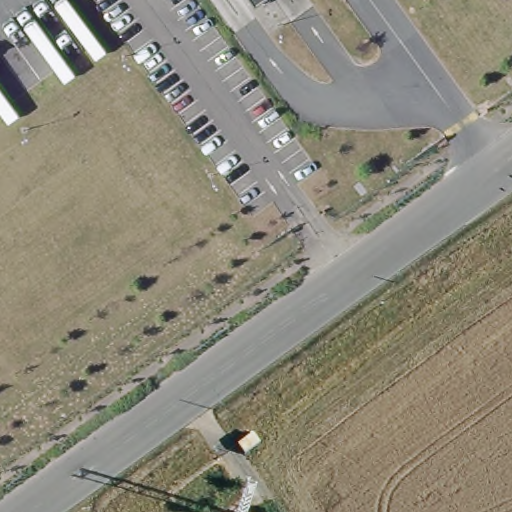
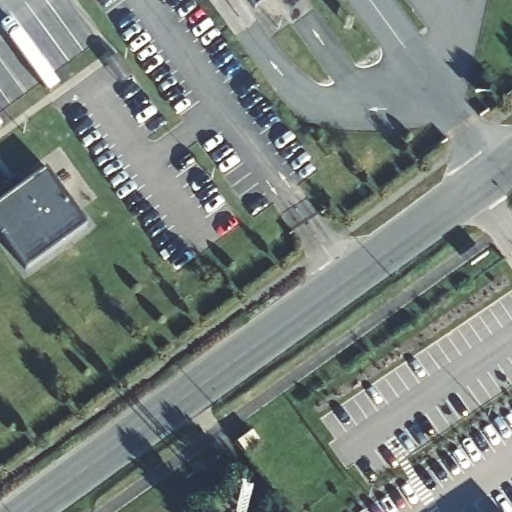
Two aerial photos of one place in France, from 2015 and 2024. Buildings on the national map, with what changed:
unchanged [(249,0),(267,0),(268,2),(257,10),(249,0)]
new [(20,176),(29,186),(51,169),(92,223),(30,265),(0,225),(0,201),(1,200),(0,199),(0,189),(20,176)]
unchanged [(259,442),(244,453),(237,443),(247,436),(252,432),(259,442)]

